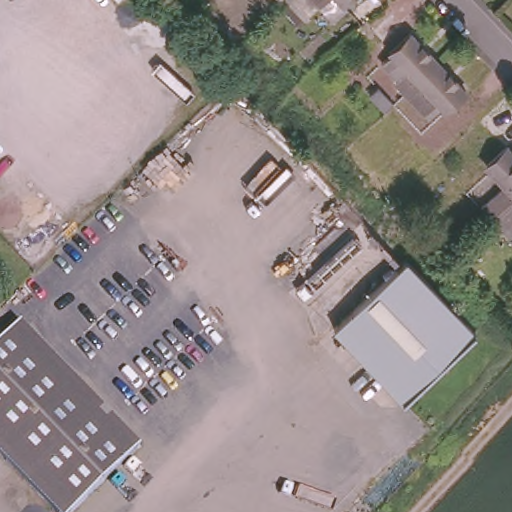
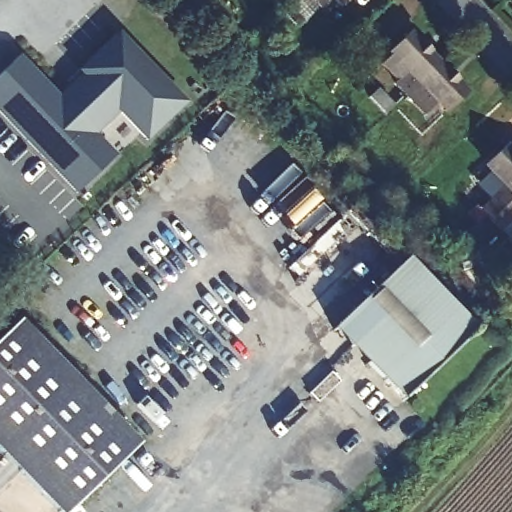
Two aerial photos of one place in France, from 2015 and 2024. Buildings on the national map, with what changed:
unchanged [(281,1),(281,0),(282,0),(281,1)]
unchanged [(320,2),(318,0),(322,0),(320,2)]
demolished [(399,20),(382,37),(373,27),(390,11),(399,20)]
unchanged [(403,90),(395,82),(400,77),(380,57),(409,30),(435,59),(403,90)]
new [(148,145),(138,136),(75,198),(0,116),(0,73),(20,54),(58,95),(120,32),(187,102),(148,145)]
unchanged [(463,88),(443,107),(435,98),(422,110),(403,90),(435,59),(463,88)]
unchanged [(383,109),(368,92),(376,84),(392,101),(383,109)]
unchanged [(488,207),(511,185),(493,166),(512,148),(512,203),(497,217),(488,207)]
unchanged [(497,217),(512,203),(512,224),(508,228),(497,217)]
unchanged [(478,331),(405,401),(336,331),(410,262),(478,331)]
unchanged [(54,512),(0,452),(0,345),(25,323),(140,450),(71,512),(54,512)]

